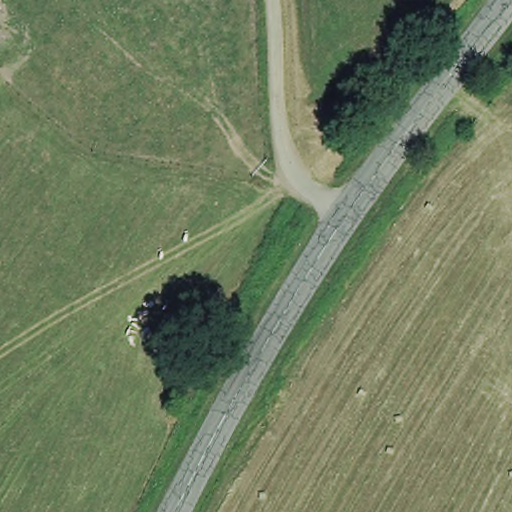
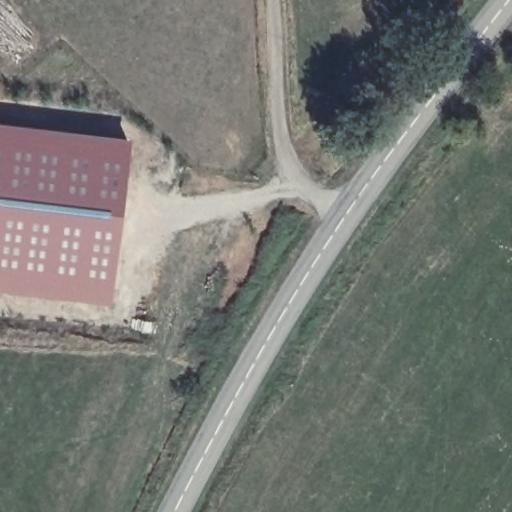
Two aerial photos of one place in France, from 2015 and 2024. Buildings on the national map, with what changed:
new [(111,305),(0,292),(0,122),(129,137),(111,305)]

